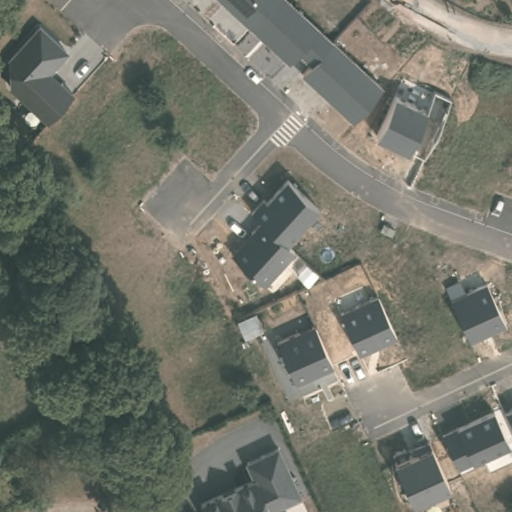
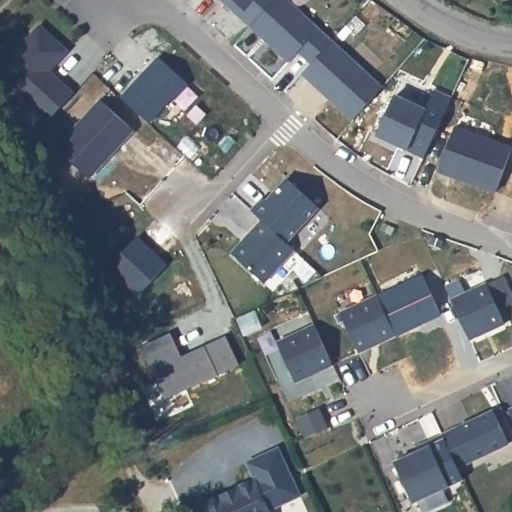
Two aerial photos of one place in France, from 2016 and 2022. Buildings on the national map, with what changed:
unchanged [(350,122),(301,79),(310,65),(298,54),(287,65),(218,0),(284,0),(382,85),(350,122)]
unchanged [(49,74),(72,93),(49,123),(0,81),(0,70),(39,27),(66,51),(49,74)]
unchanged [(429,109),(435,93),(450,98),(423,159),(376,140),(396,94),(429,109)]
new [(101,101),(134,131),(90,179),(56,150),(101,101)]
new [(456,128),(512,149),(512,152),(496,193),(440,171),(456,128)]
unchanged [(290,243),(294,250),(266,284),(235,253),(260,219),(250,212),(257,198),(266,201),(283,180),(320,213),(290,243)]
new [(377,298),(423,277),(440,315),(395,335),(377,298)]
unchanged [(471,341),(455,300),(485,286),(505,326),(471,341)]
unchanged [(361,354),(343,313),(377,298),(396,337),(361,354)]
unchanged [(295,383),(277,342),(313,326),(331,368),(295,383)]
new [(170,335),(181,358),(225,338),(239,366),(166,399),(142,347),(170,335)]
unchanged [(460,470),(443,434),(495,410),(499,416),(510,410),(512,409),(512,443),(460,470)]
unchanged [(415,503),(398,463),(433,448),(450,488),(415,503)]
unchanged [(273,512),(204,512),(201,503),(250,482),(244,466),(279,452),(300,493),(274,505),(273,512)]

